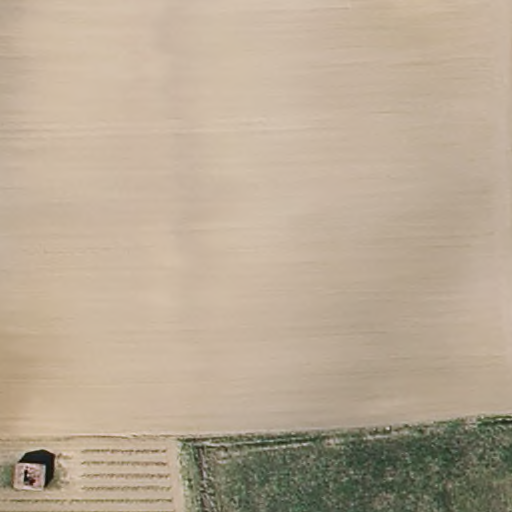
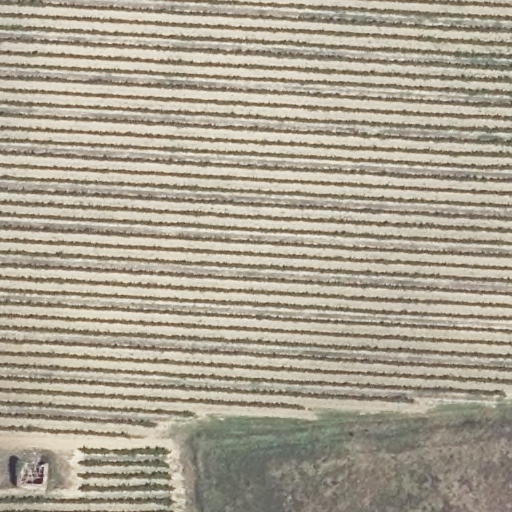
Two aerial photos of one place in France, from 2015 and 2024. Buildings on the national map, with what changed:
unchanged [(14,492),(18,465),(45,471),(41,496),(14,492)]

